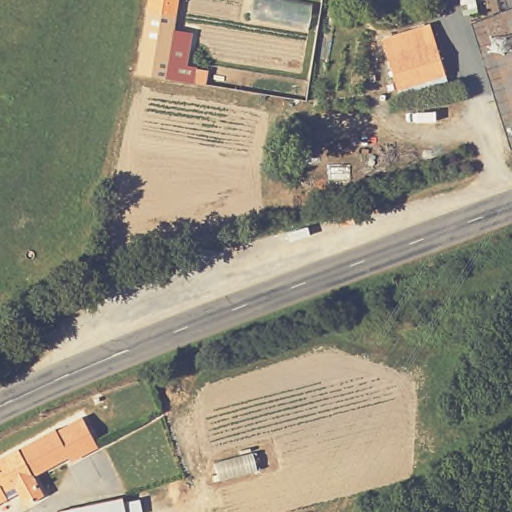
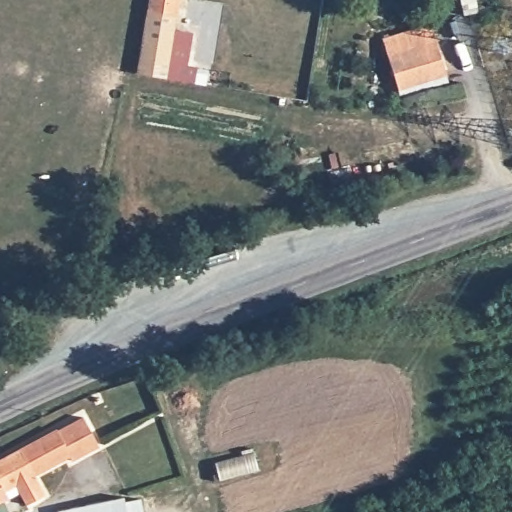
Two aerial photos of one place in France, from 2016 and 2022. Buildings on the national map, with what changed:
unchanged [(148,0),(178,0),(175,16),(146,11),(148,0)]
unchanged [(146,11),(175,16),(173,32),(178,34),(176,46),(188,47),(186,63),(173,61),(170,80),(136,74),(146,11)]
unchanged [(397,90),(388,55),(383,38),(430,25),(435,42),(445,76),(397,90)]
unchanged [(193,84),(196,70),(207,71),(205,85),(193,84)]
unchanged [(0,502),(0,460),(56,430),(57,432),(78,420),(83,417),(98,447),(91,450),(71,461),(68,457),(34,475),(45,495),(27,505),(20,492),(8,498),(0,502)]
unchanged [(257,471),(219,481),(214,462),(253,453),(257,471)]
unchanged [(123,502),(124,507),(140,505),(141,512),(78,512),(113,505),(123,502)]

